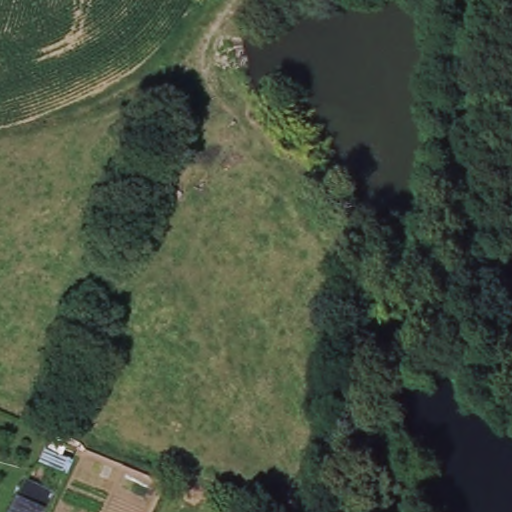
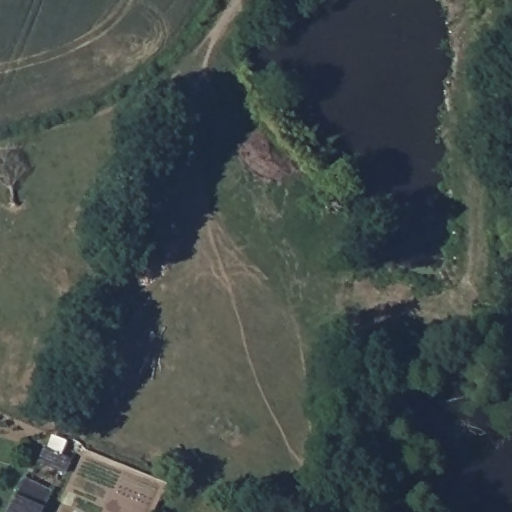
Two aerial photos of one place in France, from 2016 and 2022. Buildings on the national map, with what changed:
unchanged [(26,482),(52,496),(43,512),(9,512),(26,482)]

